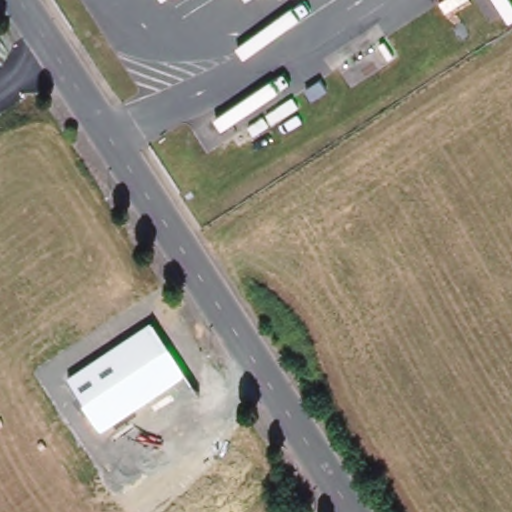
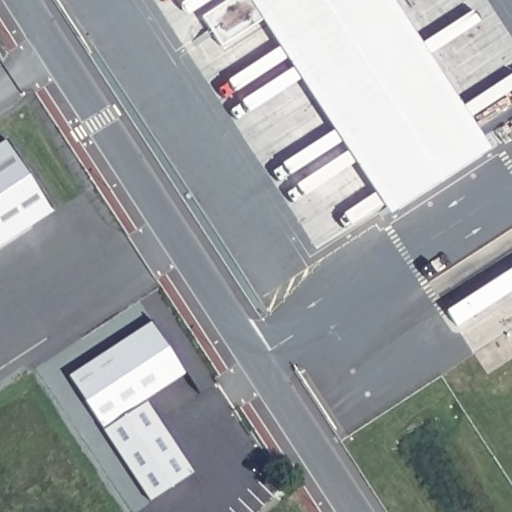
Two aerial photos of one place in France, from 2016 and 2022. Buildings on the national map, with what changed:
new [(490,150),(390,216),(262,19),(220,45),(201,17),(228,0),(243,0),(244,2),(247,0),(393,0),(490,150)]
unchanged [(244,2),(243,0),(247,0),(244,2)]
new [(57,214),(0,251),(0,150),(11,143),(57,214)]
new [(504,286),(512,299),(512,302),(451,340),(441,325),(504,286)]
unchanged [(69,375),(153,321),(187,374),(101,430),(69,375)]

